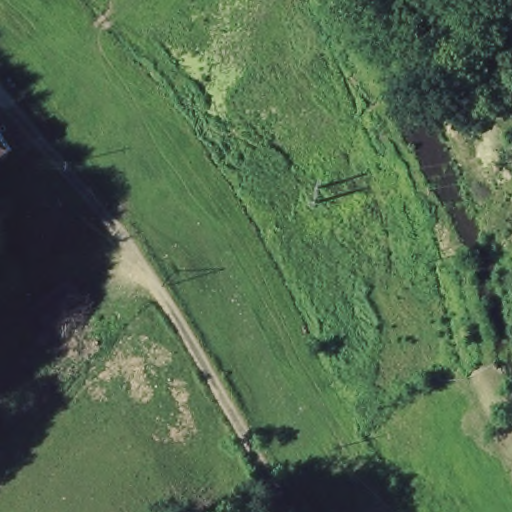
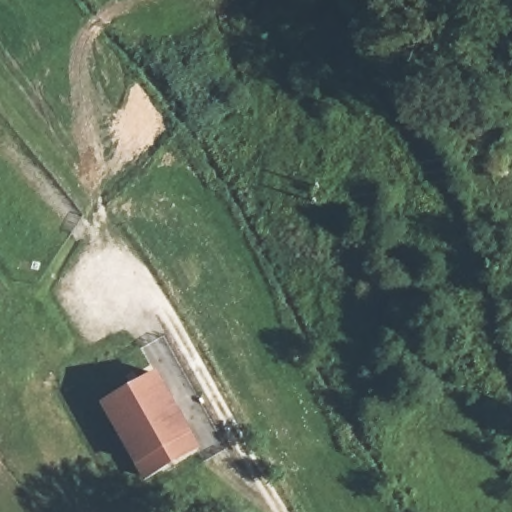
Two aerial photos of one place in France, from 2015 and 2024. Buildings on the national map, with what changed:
demolished [(0,160),(0,128),(16,149),(0,160)]
new [(157,373),(199,447),(146,477),(105,403),(157,373)]

